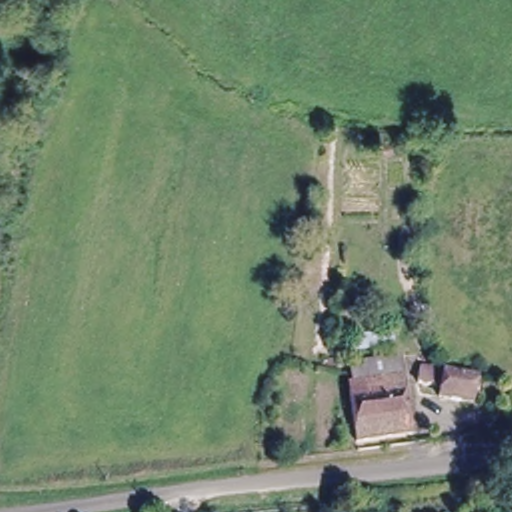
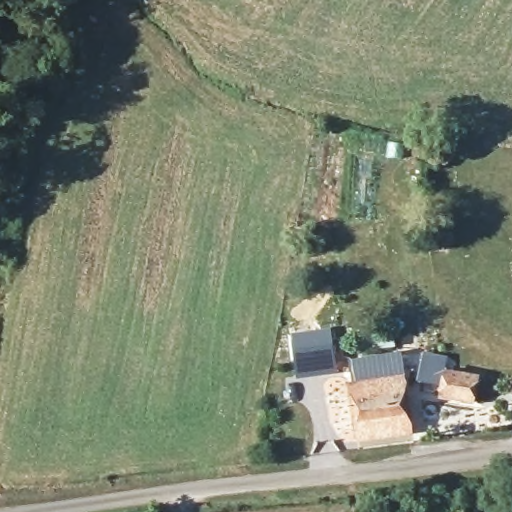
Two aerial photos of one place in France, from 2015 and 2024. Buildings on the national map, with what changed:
new [(330,328),(337,373),(297,378),(292,334),(330,328)]
unchanged [(406,376),(350,381),(348,373),(348,358),(403,351),(404,359),(406,376)]
unchanged [(476,399),(440,397),(441,386),(414,384),(418,371),(447,373),(479,379),(476,399)]
unchanged [(350,381),(406,376),(410,431),(356,437),(350,381)]

